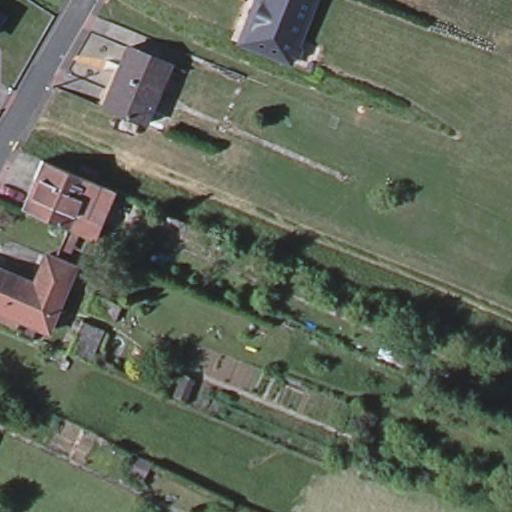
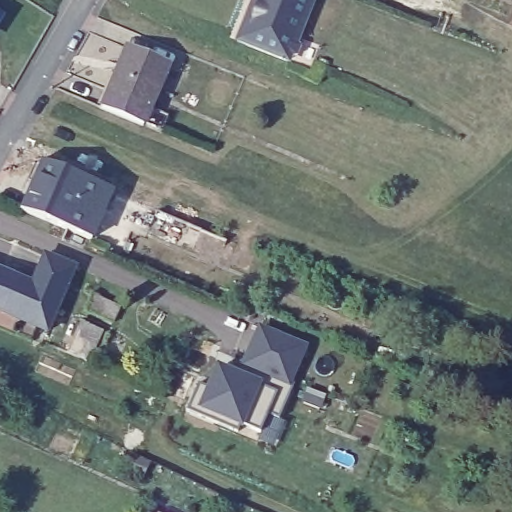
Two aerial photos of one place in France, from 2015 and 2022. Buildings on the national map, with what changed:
unchanged [(286,55),(285,59),(234,38),(235,36),(248,5),(250,0),(309,0),(299,25),(286,55)]
unchanged [(127,45),(167,61),(162,71),(152,96),(113,80),(124,55),(127,45)]
unchanged [(113,80),(152,96),(142,122),(102,105),(113,80)]
unchanged [(20,210),(39,160),(117,188),(92,241),(20,210)]
unchanged [(157,206),(202,225),(194,244),(149,225),(157,206)]
unchanged [(37,269),(45,251),(74,265),(67,281),(54,312),(0,289),(0,268),(32,281),(37,269)]
unchanged [(0,289),(54,312),(47,329),(0,310),(0,289)]
unchanged [(91,293),(117,304),(112,319),(85,308),(91,293)]
unchanged [(85,358),(67,351),(78,322),(80,319),(97,326),(97,329),(85,358)]
new [(279,418),(268,414),(260,432),(245,426),(243,430),(239,428),(237,431),(186,410),(199,383),(207,387),(217,365),(235,373),(242,360),(243,361),(258,325),(309,346),(279,418)]

